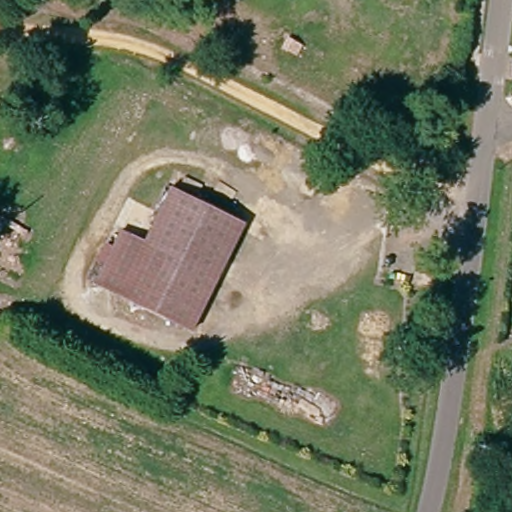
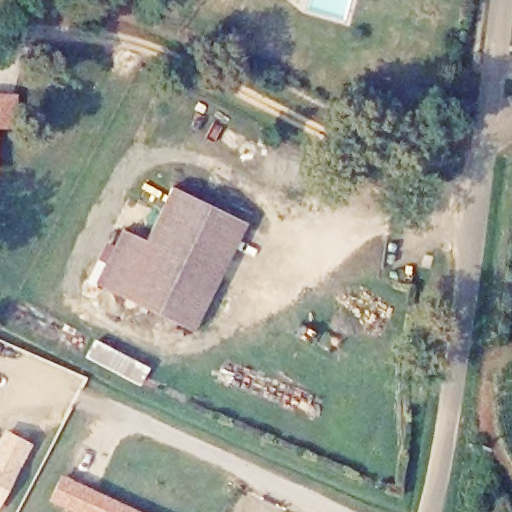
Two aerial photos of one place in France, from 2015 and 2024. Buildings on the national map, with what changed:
new [(14,126),(0,126),(0,94),(16,95),(14,126)]
unchanged [(125,230),(148,242),(176,184),(250,221),(195,334),(98,286),(125,230)]
new [(30,444),(0,502),(0,432),(2,429),(30,444)]
new [(140,512),(71,512),(47,501),(58,473),(140,512)]

